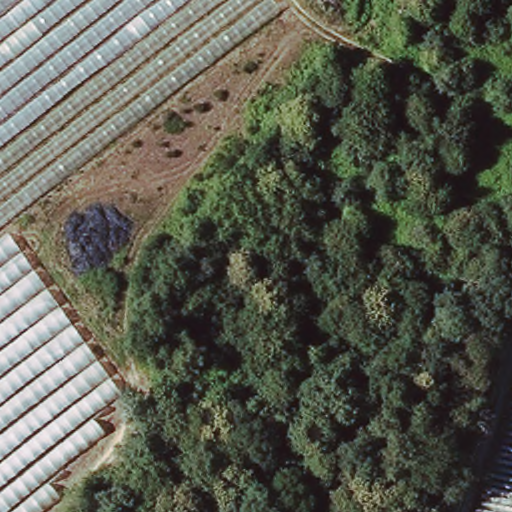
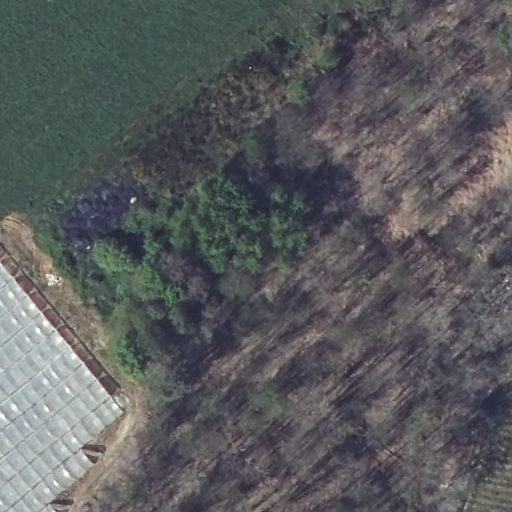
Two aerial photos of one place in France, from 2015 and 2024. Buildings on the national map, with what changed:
demolished [(269,12),(0,220),(0,0),(259,0),(269,12)]
unchanged [(48,512),(0,512),(0,241),(9,234),(120,393),(48,512)]

